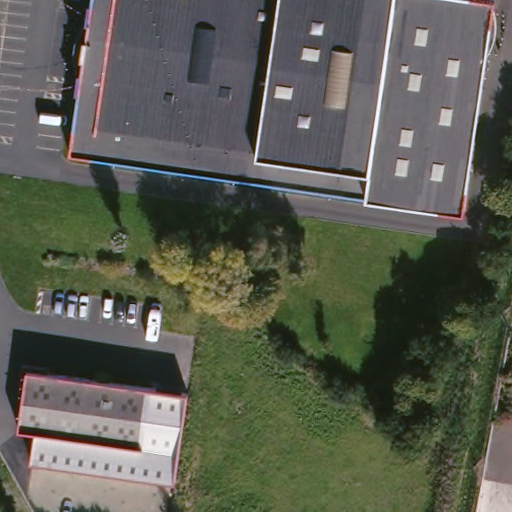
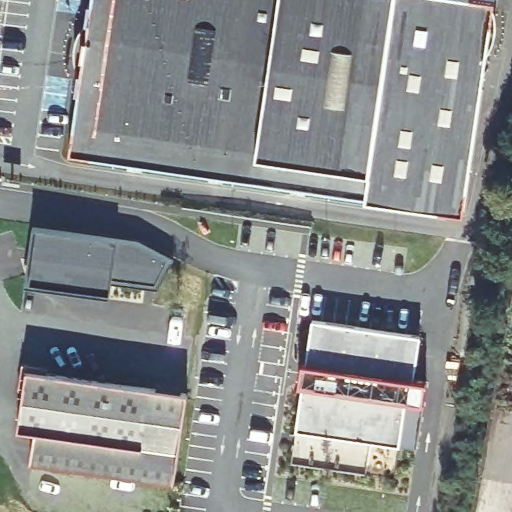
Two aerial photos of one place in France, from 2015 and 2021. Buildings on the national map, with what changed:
demolished [(23,42),(0,39),(0,0),(27,0),(23,42)]
unchanged [(464,208),(69,150),(90,0),(494,0),(464,208)]
new [(33,227),(134,241),(165,258),(152,285),(109,278),(106,295),(26,283),(33,227)]
new [(419,336),(410,399),(406,398),(399,447),(296,431),(313,322),(419,336)]
unchanged [(145,449),(19,432),(27,372),(153,390),(145,449)]
unchanged [(188,395),(174,484),(31,463),(36,434),(145,449),(153,390),(188,395)]

